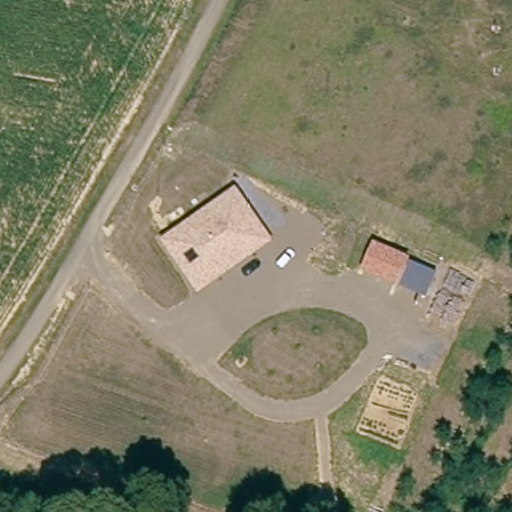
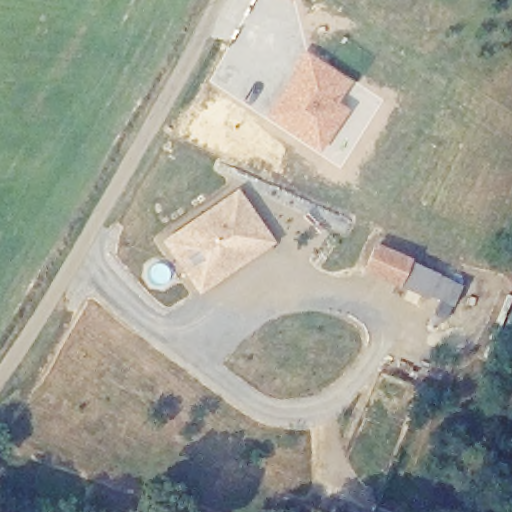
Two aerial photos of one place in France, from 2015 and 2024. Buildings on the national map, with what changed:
new [(263,115),(292,71),(288,69),(303,49),(349,81),(336,101),(347,109),(317,152),(263,115)]
unchanged [(275,242),(197,295),(160,240),(236,188),(275,242)]
unchanged [(437,273),(427,297),(398,286),(361,272),(374,242),(410,258),(437,273)]

